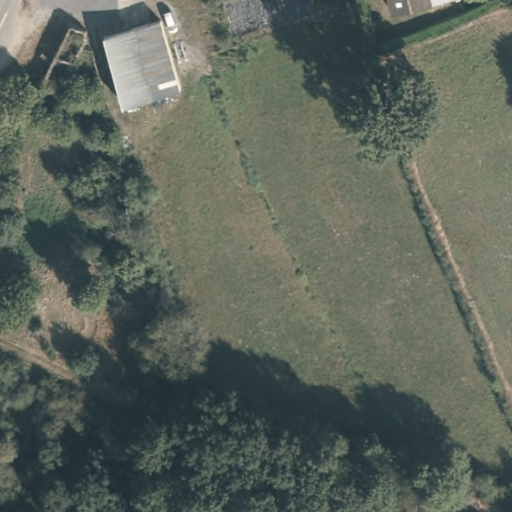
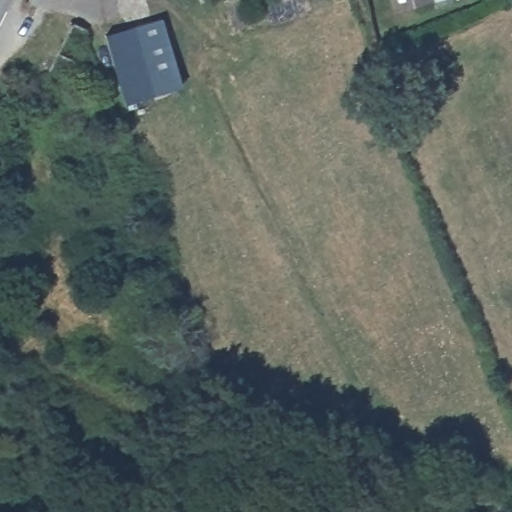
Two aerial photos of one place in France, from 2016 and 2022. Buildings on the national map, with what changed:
unchanged [(392,0),(415,0),(393,6),(392,0)]
unchanged [(164,16),(181,86),(159,95),(137,25),(164,16)]
unchanged [(103,35),(137,25),(159,95),(142,100),(124,105),(103,35)]

